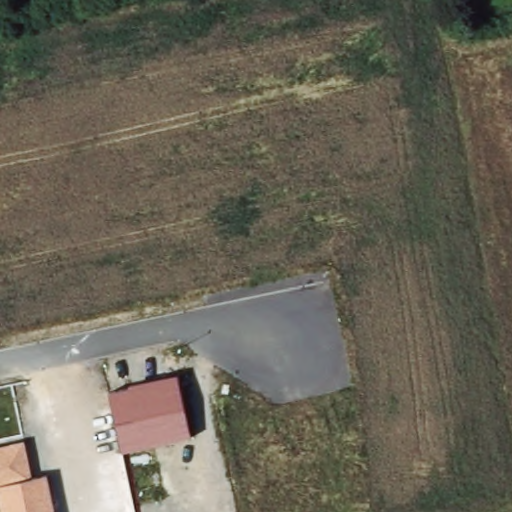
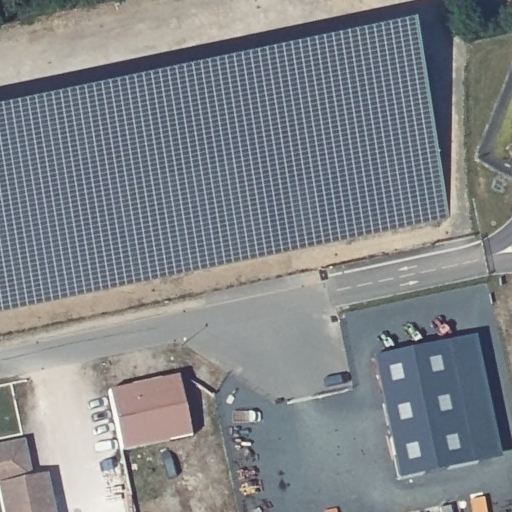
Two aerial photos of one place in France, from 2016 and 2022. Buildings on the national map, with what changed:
new [(448,218),(0,312),(0,114),(409,27),(448,218)]
unchanged [(193,438),(121,453),(107,392),(129,388),(127,382),(177,373),(193,438)]
unchanged [(27,441),(33,477),(50,476),(56,512),(2,512),(0,504),(0,446),(27,441)]

